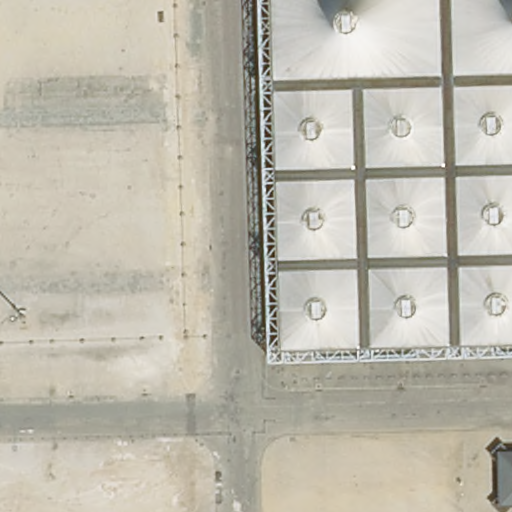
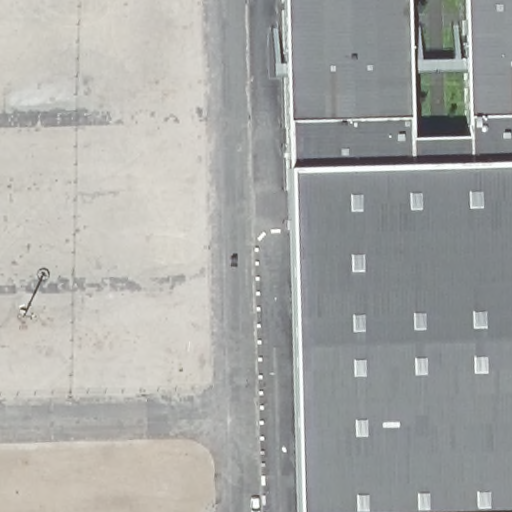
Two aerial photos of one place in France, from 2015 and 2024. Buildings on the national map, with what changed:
demolished [(292,346),(283,0),(512,0),(512,341),(292,346)]
new [(296,512),(283,0),(406,0),(411,169),(469,167),(464,0),(512,0),(512,512),(296,512)]
new [(467,72),(408,74),(408,61),(466,60),(467,72)]
demolished [(497,500),(497,445),(512,445),(512,500),(497,500)]

